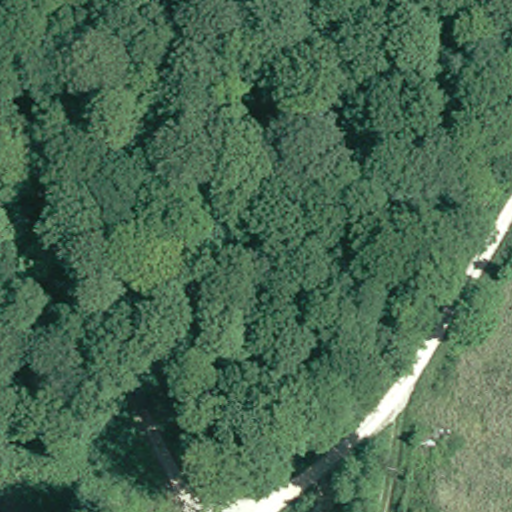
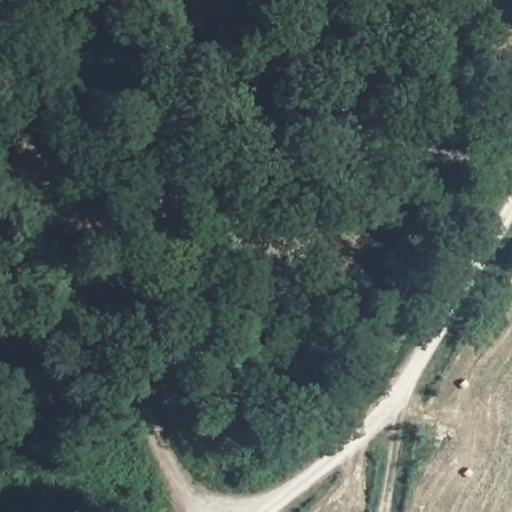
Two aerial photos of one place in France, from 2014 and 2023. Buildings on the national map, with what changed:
unchanged [(420,431),(440,436),(432,459),(412,454),(420,431)]

